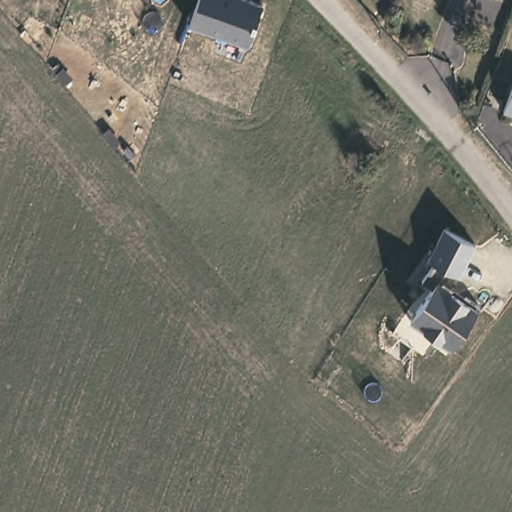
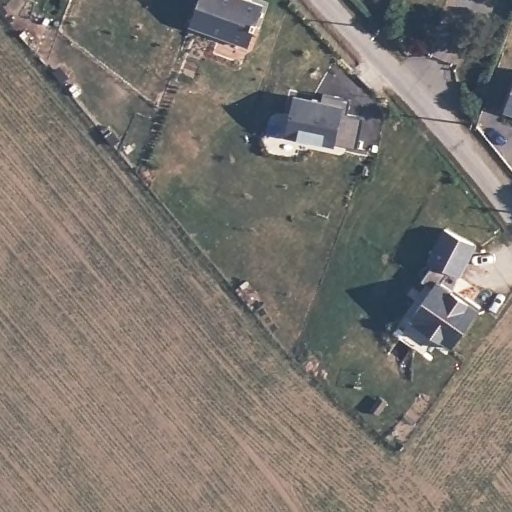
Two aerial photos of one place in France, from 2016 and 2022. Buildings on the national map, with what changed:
unchanged [(247,47),(189,27),(200,0),(251,0),(264,5),(247,47)]
new [(295,100),(322,104),(323,95),(352,100),(349,115),(366,118),(361,150),(337,145),(337,147),(288,139),(295,100)]
unchanged [(512,115),(508,114),(512,104),(512,115)]
unchanged [(462,279),(450,273),(443,284),(481,309),(452,349),(410,321),(434,286),(425,282),(434,264),(430,262),(446,232),(477,246),(462,279)]

